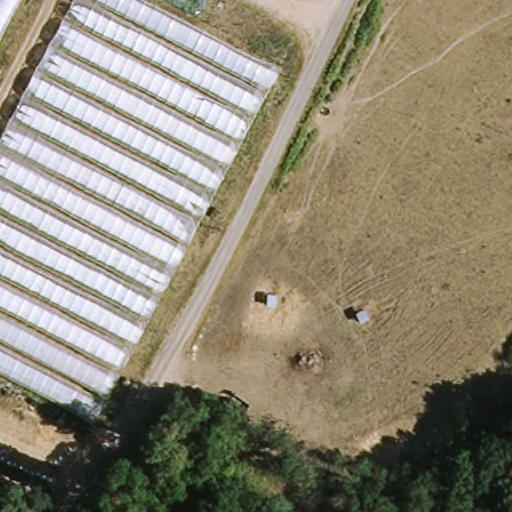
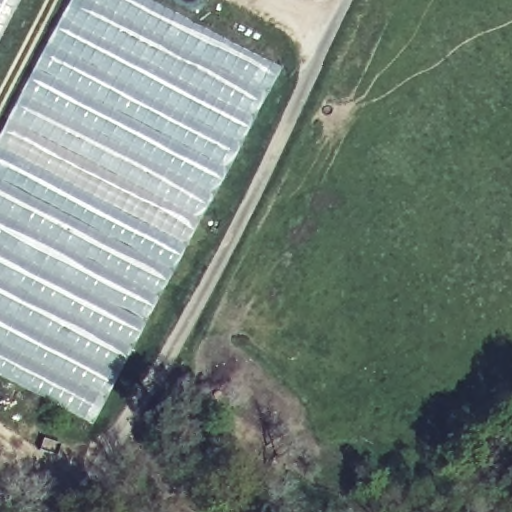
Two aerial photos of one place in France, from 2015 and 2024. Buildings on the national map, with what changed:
unchanged [(0,40),(0,0),(20,0),(0,40)]
unchanged [(70,0),(146,0),(278,70),(92,424),(0,374),(0,134),(70,0)]

